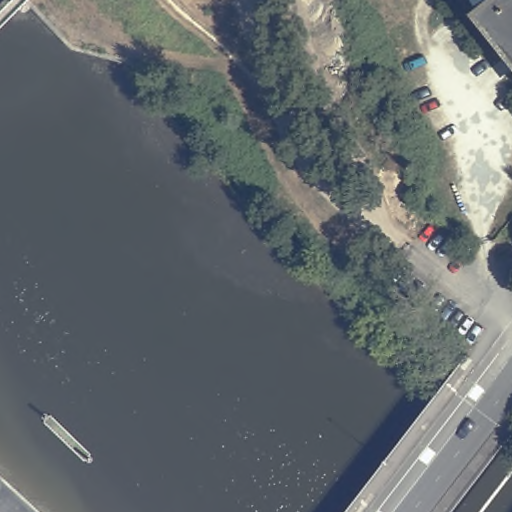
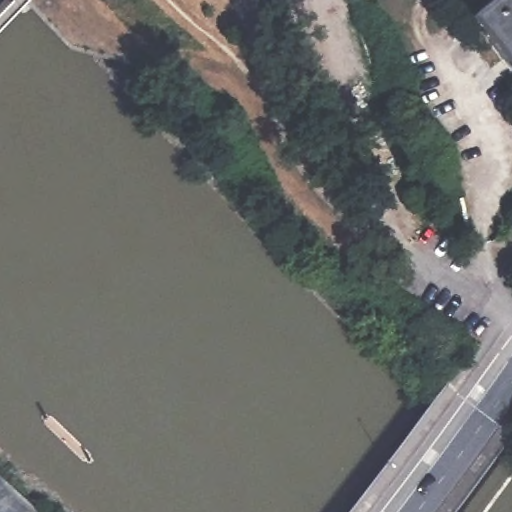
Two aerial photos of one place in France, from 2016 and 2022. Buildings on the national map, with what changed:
unchanged [(472,20),(497,0),(512,0),(512,69),(472,20)]

